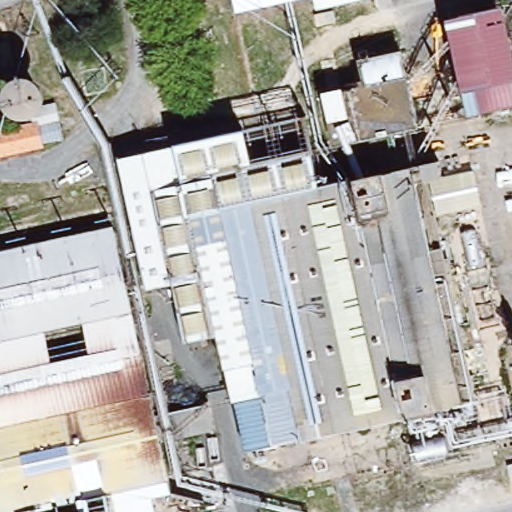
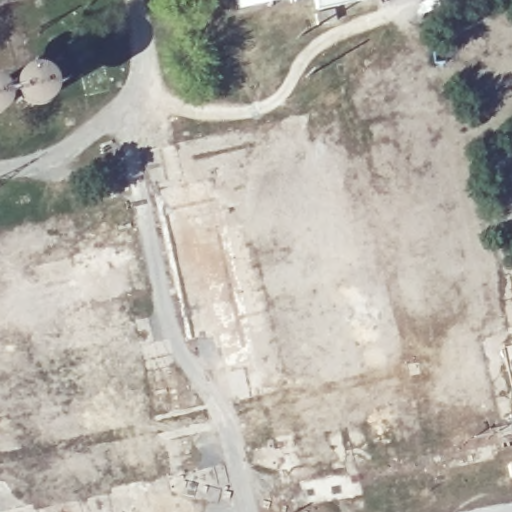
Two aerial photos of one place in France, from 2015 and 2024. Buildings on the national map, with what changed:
unchanged [(234,0),(282,0),(235,11),(234,0)]
unchanged [(314,0),(358,0),(316,9),(314,0)]
demolished [(512,47),(512,105),(481,113),(469,116),(463,91),(449,18),(504,7),(512,47)]
demolished [(418,126),(359,140),(342,143),(338,123),(326,122),(320,91),(367,81),(362,57),(401,49),(418,126)]
demolished [(45,146),(0,158),(0,130),(37,123),(45,146)]
demolished [(476,399),(462,402),(436,410),(404,416),(245,449),(224,368),(213,336),(188,340),(173,285),(150,290),(138,227),(209,211),(208,204),(343,174),(385,170),(413,164),(431,249),(444,247),(476,399)]
demolished [(166,494),(153,498),(155,512),(0,512),(0,252),(116,225),(150,290),(177,405),(172,481),(160,482),(166,494)]
demolished [(214,431),(184,437),(181,411),(207,403),(214,431)]

